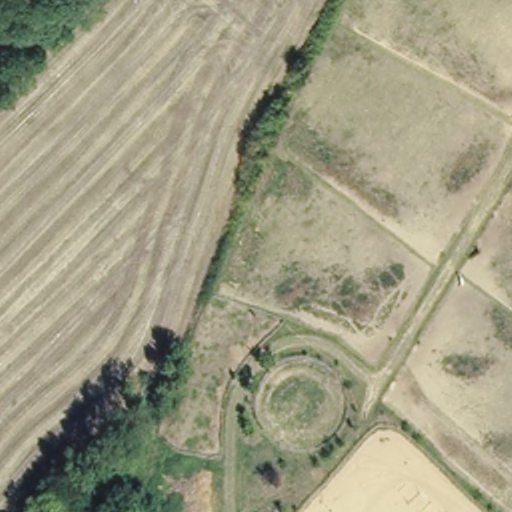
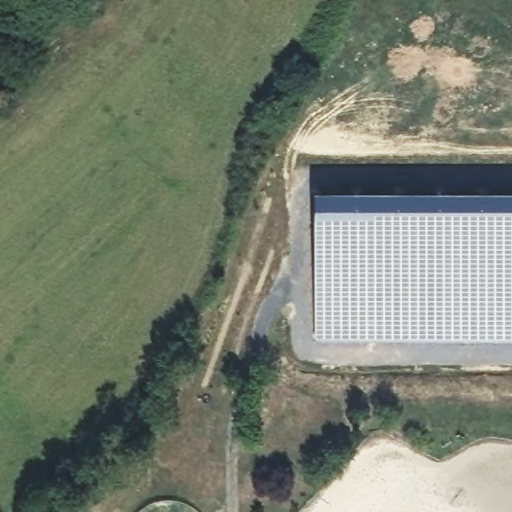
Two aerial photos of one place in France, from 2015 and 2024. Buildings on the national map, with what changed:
new [(512,189),(512,335),(312,335),(312,189),(512,189)]

